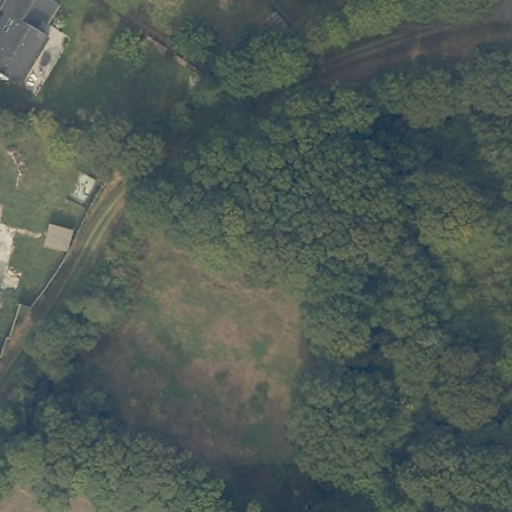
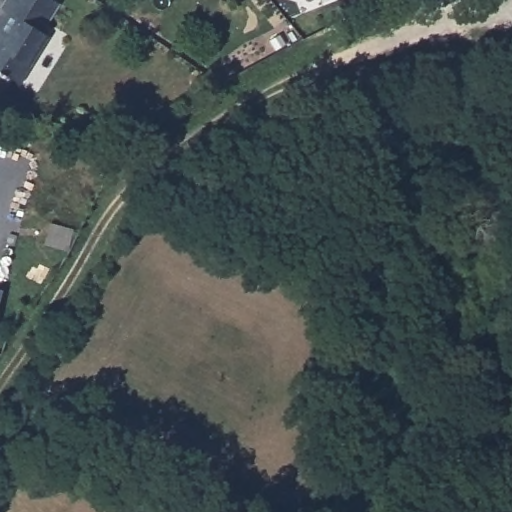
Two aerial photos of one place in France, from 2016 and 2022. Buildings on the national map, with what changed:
unchanged [(54,24),(46,21),(42,28),(52,36),(22,86),(8,76),(5,78),(0,75),(0,29),(10,13),(2,7),(7,0),(13,0),(16,2),(17,0),(51,0),(63,8),(54,24)]
unchanged [(77,230),(71,252),(46,245),(54,222),(77,230)]
unchanged [(5,288),(0,304),(0,287),(5,288)]

